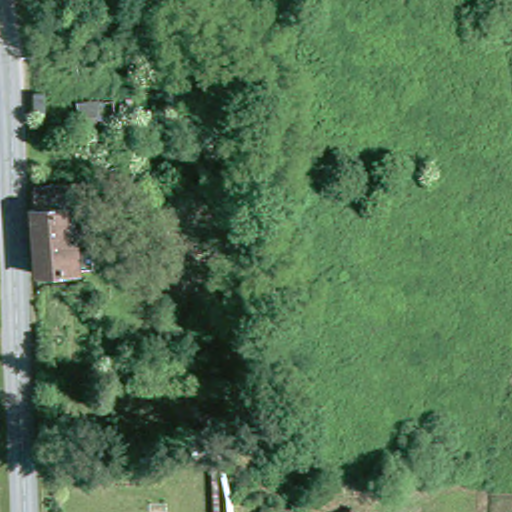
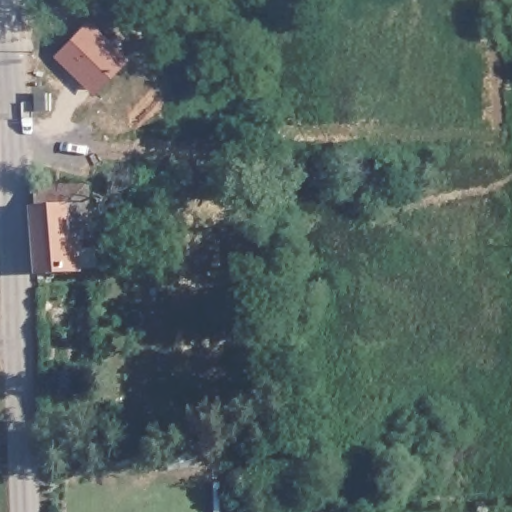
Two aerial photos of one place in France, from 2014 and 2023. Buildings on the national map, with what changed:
new [(54,56),(90,18),(130,57),(95,94),(54,56)]
unchanged [(28,197),(81,194),(82,215),(30,219),(28,197)]
unchanged [(82,215),(85,250),(71,251),(72,262),(86,261),(87,279),(72,280),(72,282),(31,285),(26,219),(30,219),(82,215)]

